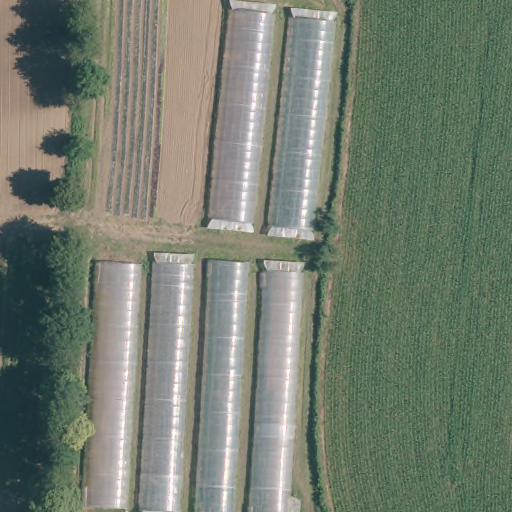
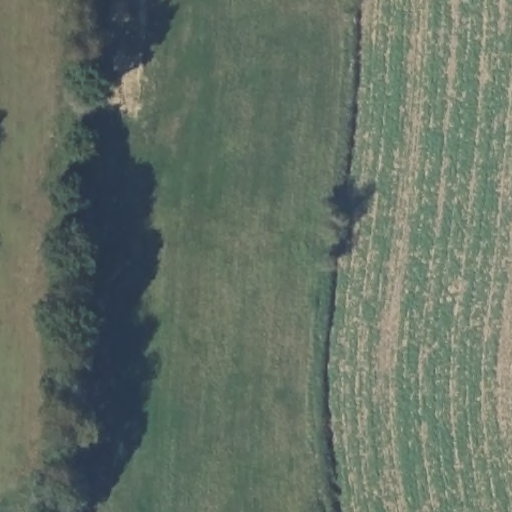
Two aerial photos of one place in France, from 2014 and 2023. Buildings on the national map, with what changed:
demolished [(230,10),(335,22),(315,227),(212,216),(230,10)]
demolished [(308,266),(293,512),(162,512),(89,507),(98,260),(308,266)]

